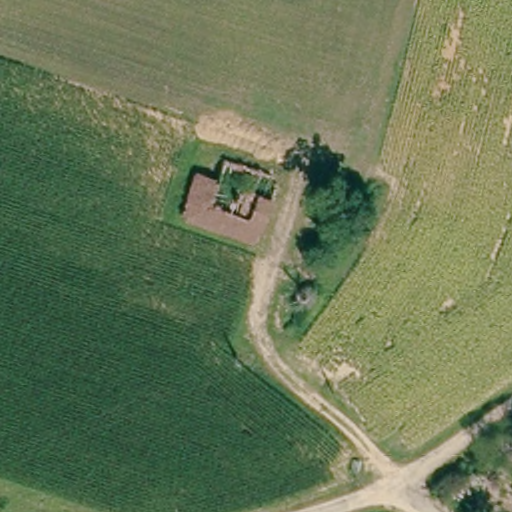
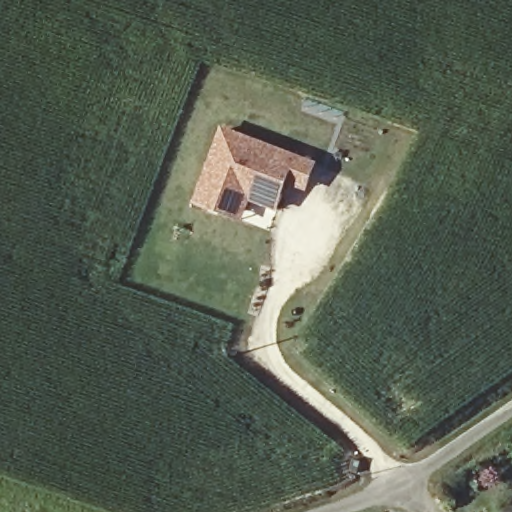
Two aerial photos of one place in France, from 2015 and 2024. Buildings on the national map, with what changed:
new [(318,163),(307,194),(290,187),(280,214),(251,203),(243,223),(193,205),(223,128),(318,163)]
demolished [(181,220),(196,178),(217,184),(223,165),(279,182),(260,249),(253,245),(181,220)]
demolished [(363,214),(356,235),(340,229),(346,208),(363,214)]

